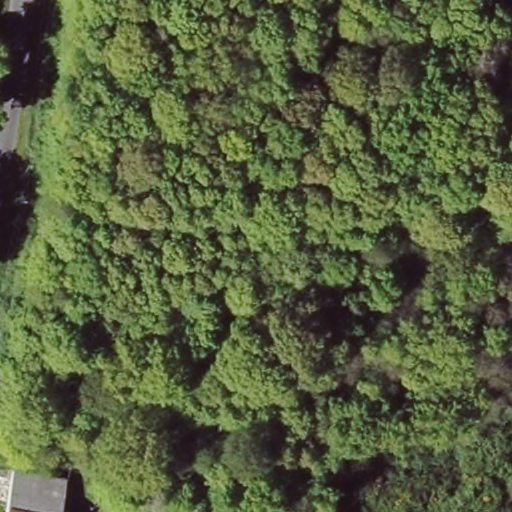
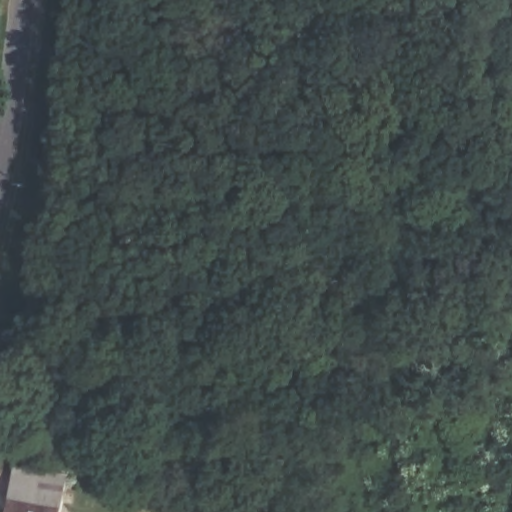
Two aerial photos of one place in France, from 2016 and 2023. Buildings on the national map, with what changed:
unchanged [(66,474),(60,506),(60,512),(6,512),(7,498),(11,466),(66,474)]
unchanged [(180,509),(145,504),(148,490),(181,496),(180,509)]

